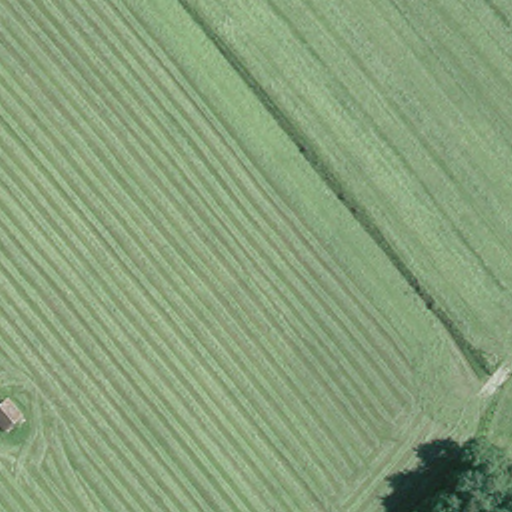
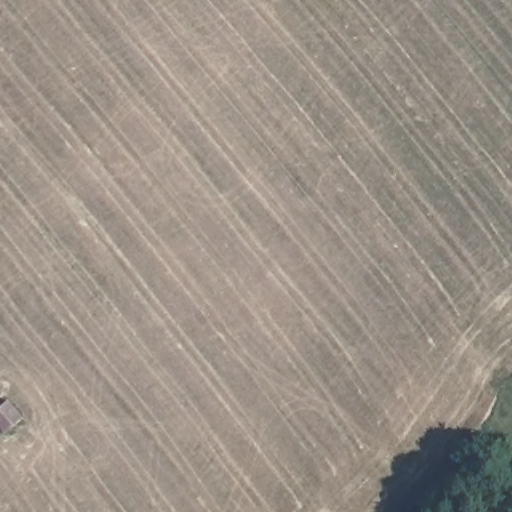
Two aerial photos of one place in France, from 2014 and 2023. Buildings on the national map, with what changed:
unchanged [(27,422),(7,439),(0,429),(0,404),(10,396),(27,422)]

